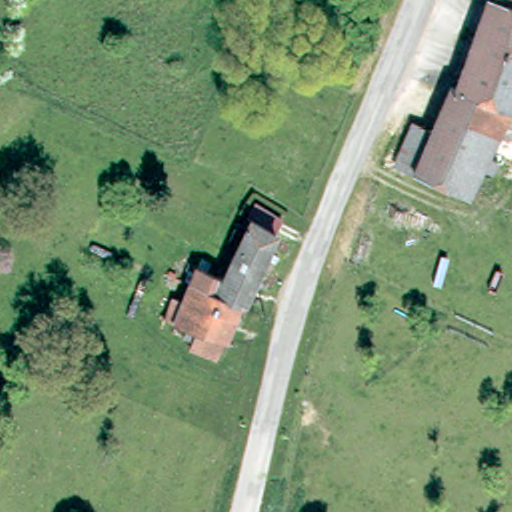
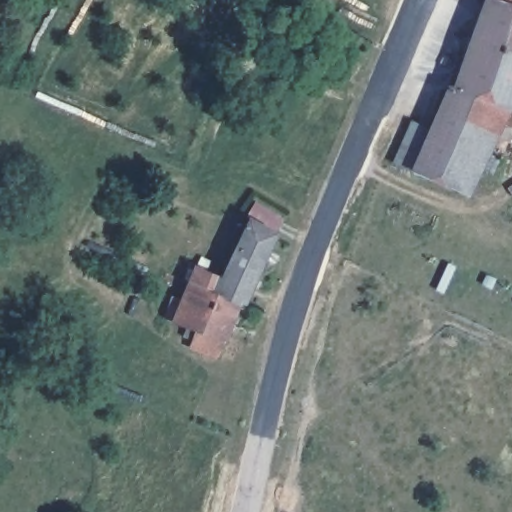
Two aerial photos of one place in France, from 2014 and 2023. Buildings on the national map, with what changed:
unchanged [(456,86),(486,0),(512,0),(512,109),(511,108),(456,86)]
unchanged [(414,120),(431,128),(452,85),(456,86),(511,108),(488,153),(498,159),(492,170),(481,165),(469,193),(418,171),(414,169),(396,160),(414,120)]
unchanged [(192,266),(219,277),(252,209),(276,220),(239,301),(236,300),(188,279),(192,266)]
unchanged [(185,347),(192,329),(163,318),(171,297),(179,300),(188,279),(236,300),(213,358),(185,347)]

